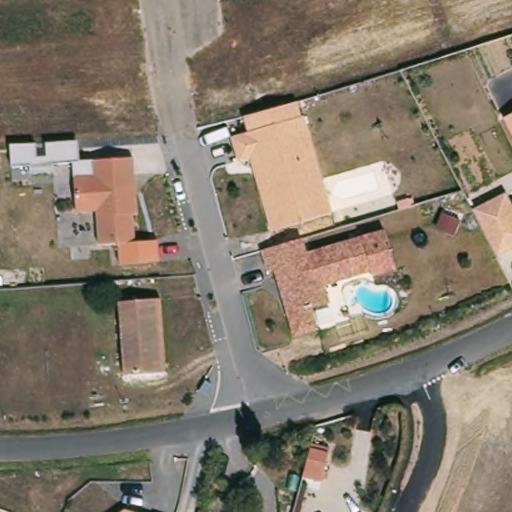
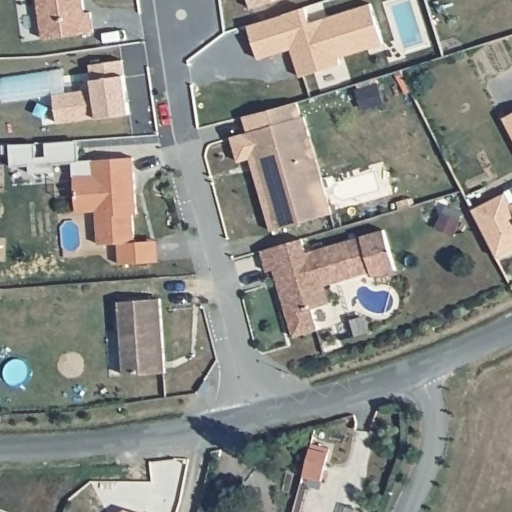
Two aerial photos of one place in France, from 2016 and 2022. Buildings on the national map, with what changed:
new [(91,12),(94,32),(43,39),(38,0),(84,0),(85,13),(91,12)]
new [(247,0),(276,0),(249,7),(247,0)]
new [(305,7),(310,22),(371,2),(384,43),(339,57),(341,64),(299,75),(290,49),(258,58),(248,25),(305,7)]
new [(94,90),(90,65),(122,60),(129,110),(98,114),(98,116),(58,124),(54,96),(94,90)]
unchanged [(502,119),(512,113),(512,138),(502,119)]
unchanged [(239,162),(232,137),(308,115),(313,134),(325,175),(337,216),(274,234),(263,196),(252,159),(239,162)]
unchanged [(90,172),(91,160),(132,156),(135,242),(95,243),(92,211),(73,212),(72,177),(90,172)]
unchanged [(504,190),(510,202),(512,201),(512,245),(495,253),(472,207),(504,190)]
unchanged [(274,269),(268,271),(262,250),(288,242),(303,238),(307,252),(362,236),(372,270),(325,284),(329,301),(312,306),(318,329),(294,336),(287,312),(280,288),(274,269)]
unchanged [(165,372),(125,375),(120,301),(160,298),(165,372)]
unchanged [(303,476),(310,448),(310,446),(311,443),(330,448),(329,453),(322,481),(303,476)]
unchanged [(123,510),(131,512),(120,512),(123,510)]

